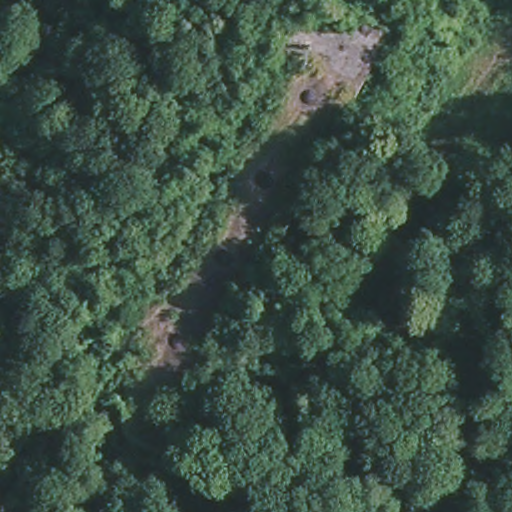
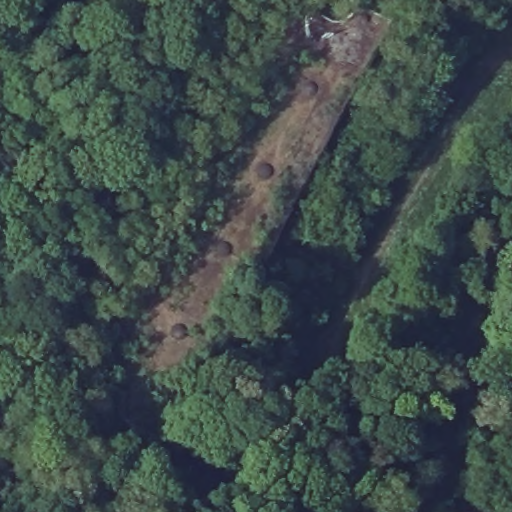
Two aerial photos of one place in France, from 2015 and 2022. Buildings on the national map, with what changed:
unchanged [(298,0),(328,0),(383,31),(152,440),(75,396),(298,0)]

